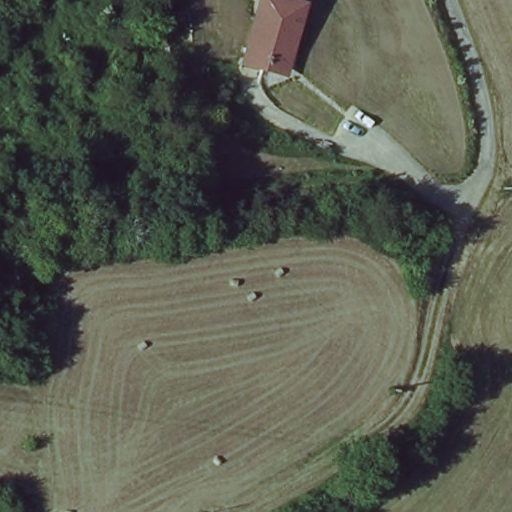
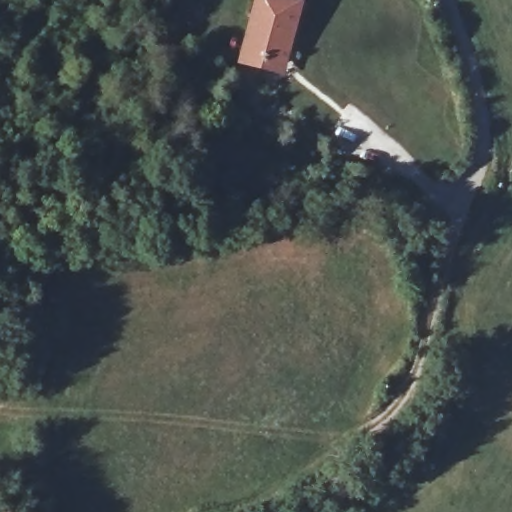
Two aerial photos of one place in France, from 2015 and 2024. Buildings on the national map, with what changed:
unchanged [(241,56),(258,0),(271,0),(304,11),(285,69),(241,56)]

